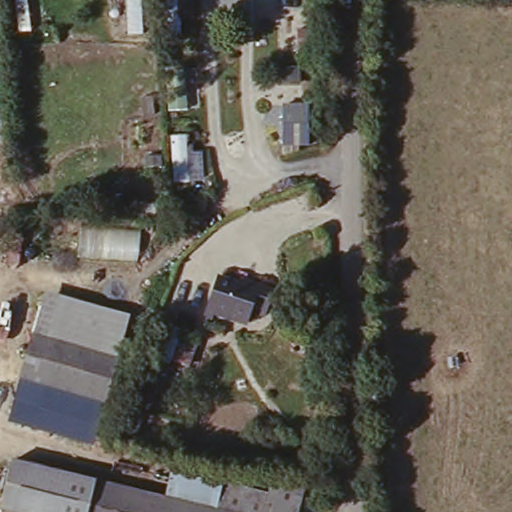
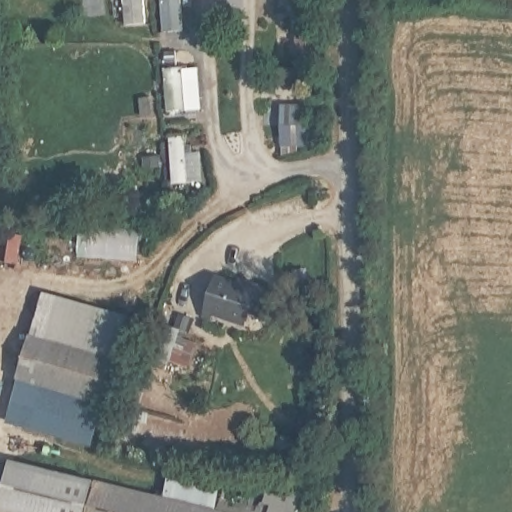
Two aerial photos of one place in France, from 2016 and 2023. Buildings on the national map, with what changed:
unchanged [(282,117),(310,119),(310,140),(282,139),(282,117)]
unchanged [(245,280),(248,275),(274,284),(265,311),(251,307),(248,316),(215,305),(213,313),(203,309),(217,271),(245,280)]
unchanged [(134,312),(100,441),(13,419),(49,288),(134,312)]
unchanged [(180,324),(169,357),(146,350),(159,317),(180,324)]
unchanged [(0,487),(10,452),(157,492),(170,495),(214,508),(230,512),(31,512),(0,503),(0,487)]
unchanged [(177,463),(266,483),(263,494),(224,483),(214,508),(170,495),(177,463)]
unchanged [(304,492),(298,512),(259,512),(264,494),(268,481),(304,492)]
unchanged [(230,512),(214,508),(224,483),(263,494),(264,494),(259,512),(230,512)]

